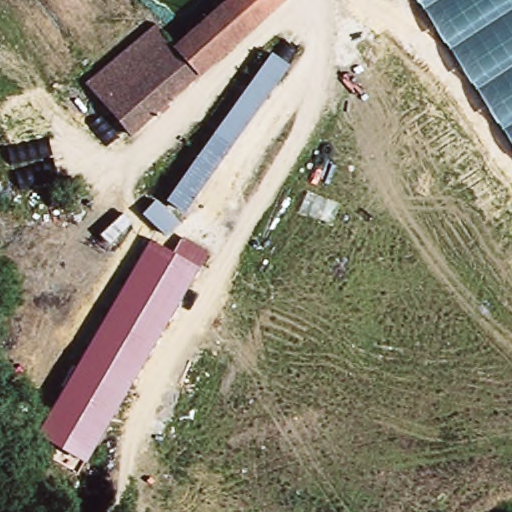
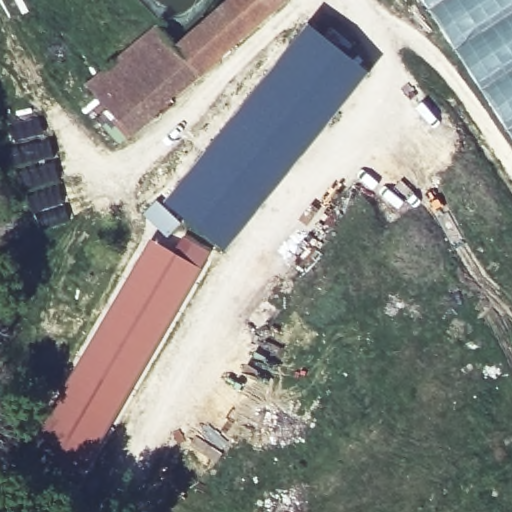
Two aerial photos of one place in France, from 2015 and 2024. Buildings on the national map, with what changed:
unchanged [(174,47),(227,0),(287,0),(203,78),(138,139),(88,84),(155,26),(174,47)]
unchanged [(512,0),(512,138),(424,0),(512,0)]
new [(164,200),(307,22),(367,72),(224,248),(164,200)]
demolished [(268,54),(286,65),(233,147),(213,135),(268,54)]
demolished [(213,135),(233,147),(188,214),(168,203),(213,135)]
unchanged [(150,240),(174,254),(183,237),(209,252),(87,461),(38,433),(150,240)]

